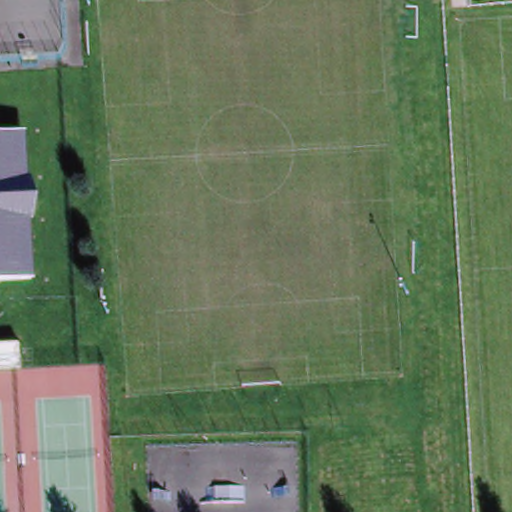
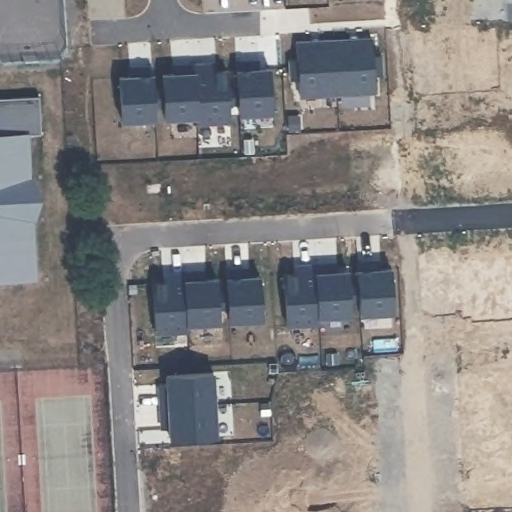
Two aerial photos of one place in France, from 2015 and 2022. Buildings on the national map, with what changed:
new [(295,38),(372,34),(371,49),(381,51),(381,73),(371,74),(372,95),(300,100),(295,38)]
new [(162,70),(187,69),(188,62),(206,62),(207,68),(226,66),(227,123),(195,124),(195,118),(162,120),(162,70)]
new [(234,67),(268,66),(270,112),(237,114),(234,67)]
new [(117,73),(151,71),(154,119),(120,121),(117,73)]
unchanged [(23,136),(25,172),(32,174),(35,200),(33,218),(27,220),(31,274),(0,277),(0,136),(23,136)]
new [(282,271),(292,271),(293,259),(341,256),(342,263),(346,263),(349,315),(320,316),(318,326),(287,330),(282,271)]
new [(353,264),(389,263),(391,312),(357,315),(353,264)]
new [(152,280),(162,280),(163,269),(217,266),(219,322),(186,324),(187,331),(154,335),(152,280)]
new [(224,269),(258,267),(261,321),(228,323),(224,269)]
new [(165,373),(212,371),(215,436),(168,438),(165,373)]

